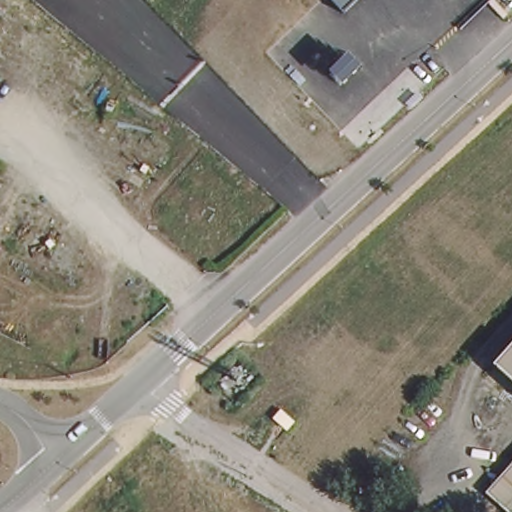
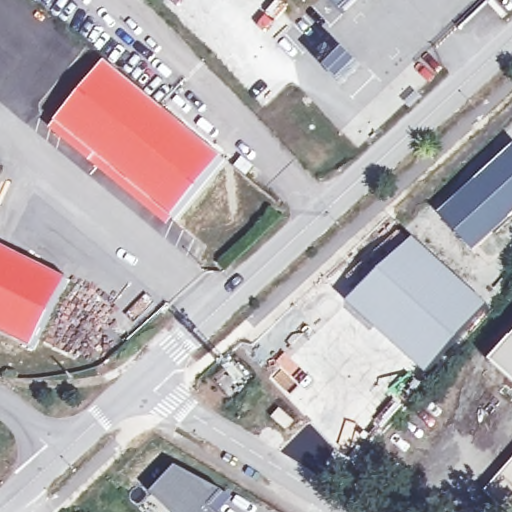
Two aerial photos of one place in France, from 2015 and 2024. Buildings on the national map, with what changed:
unchanged [(341,10),(332,0),(352,0),(341,10)]
new [(107,60),(178,117),(226,159),(167,227),(47,130),(107,60)]
new [(512,148),(512,217),(472,251),(438,214),(512,148)]
new [(415,237),(489,306),(427,375),(348,303),(415,237)]
demolished [(148,323),(155,330),(150,334),(149,332),(140,340),(135,335),(148,323)]
unchanged [(496,363),(512,346),(512,377),(496,363)]
new [(222,491),(209,506),(215,512),(170,512),(151,494),(175,466),(222,491)]
unchanged [(510,509),(511,506),(502,499),(500,484),(512,470),(512,511),(510,509)]

